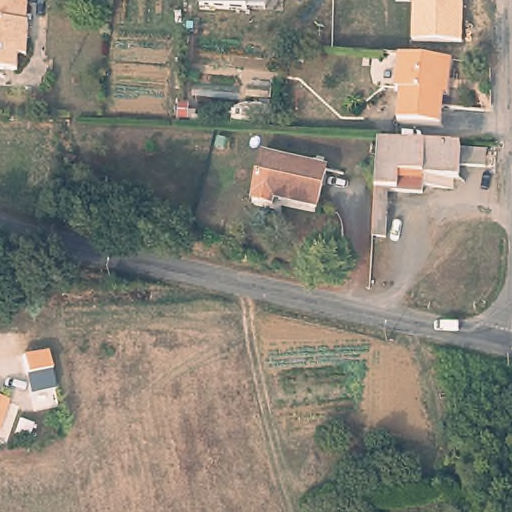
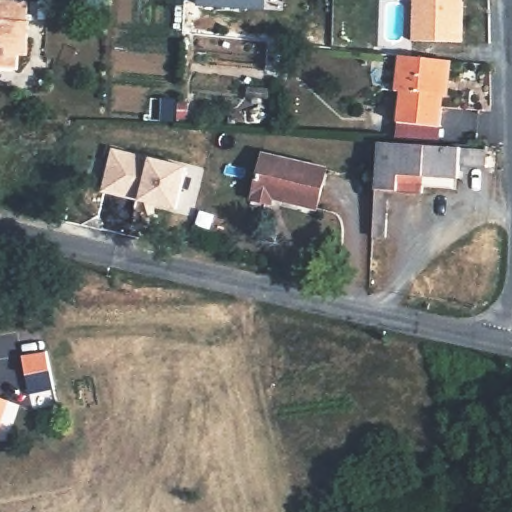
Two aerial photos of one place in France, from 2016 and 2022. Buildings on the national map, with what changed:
unchanged [(24,19),(27,19),(25,53),(25,54),(17,54),(16,55),(16,68),(0,67),(0,0),(24,0),(24,19)]
unchanged [(270,13),(197,7),(198,0),(270,0),(270,13)]
unchanged [(464,42),(412,40),(413,0),(465,0),(464,42)]
unchanged [(452,59),(450,98),(445,97),(441,125),(408,123),(410,92),(393,92),(396,54),(447,59),(452,59)]
unchanged [(377,142),(484,148),(483,164),(458,163),(457,176),(422,174),(421,192),(388,190),(385,239),(383,239),(371,238),(375,189),(377,142)]
new [(111,147),(149,157),(186,166),(176,211),(138,202),(100,192),(111,147)]
unchanged [(251,197),(263,154),(325,169),(316,209),(274,199),(272,200),(271,204),(251,199),(251,197)]
unchanged [(0,412),(0,398),(4,399),(0,412)]

